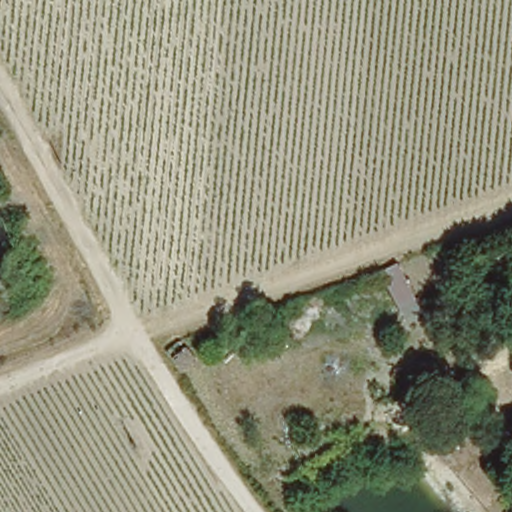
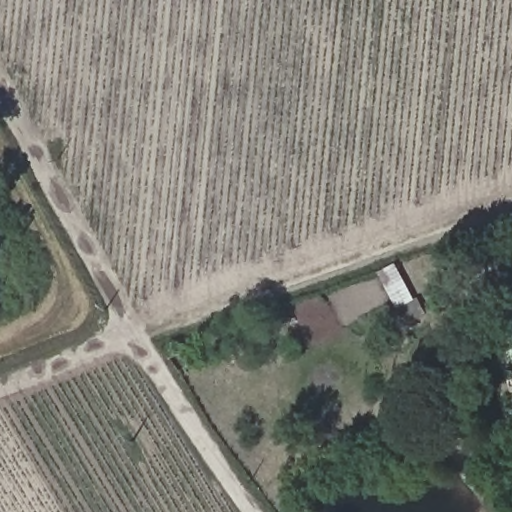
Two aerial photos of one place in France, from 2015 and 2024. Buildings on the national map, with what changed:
unchanged [(182,371),(165,351),(179,340),(195,360),(182,371)]

